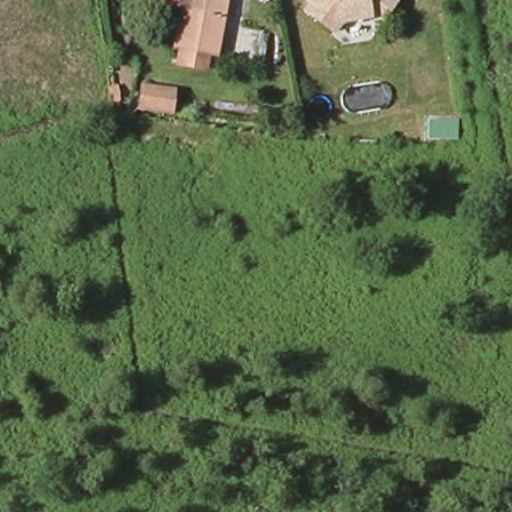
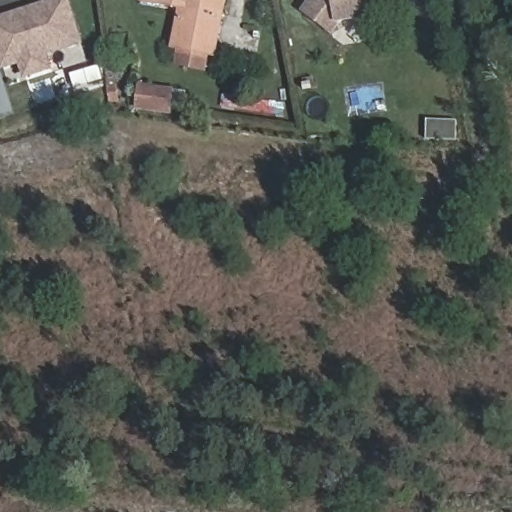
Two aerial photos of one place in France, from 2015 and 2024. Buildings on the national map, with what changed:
new [(55,69),(24,79),(20,66),(2,72),(0,64),(0,18),(52,0),(71,0),(85,45),(50,56),(55,69)]
unchanged [(176,31),(180,7),(140,0),(218,0),(222,0),(216,37),(212,54),(173,48),(176,31)]
unchanged [(303,12),(311,0),(400,0),(382,28),(371,20),(342,23),(335,34),(303,12)]
unchanged [(173,117),(136,111),(140,83),(177,88),(173,117)]

